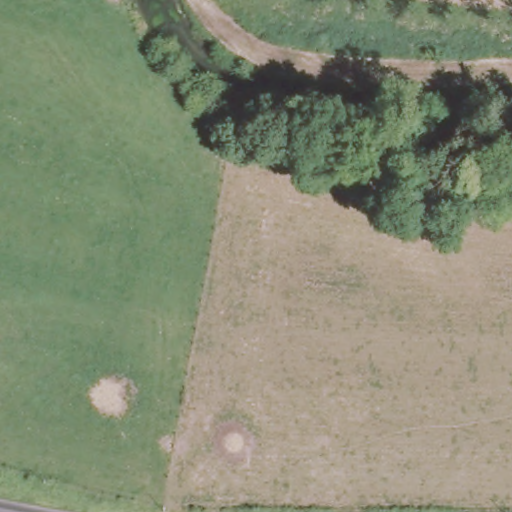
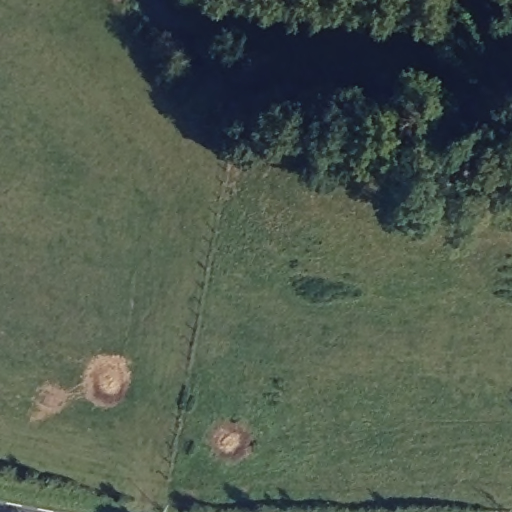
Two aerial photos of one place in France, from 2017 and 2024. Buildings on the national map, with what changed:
unchanged [(510,144),(510,159),(490,159),(490,142),(510,144)]

